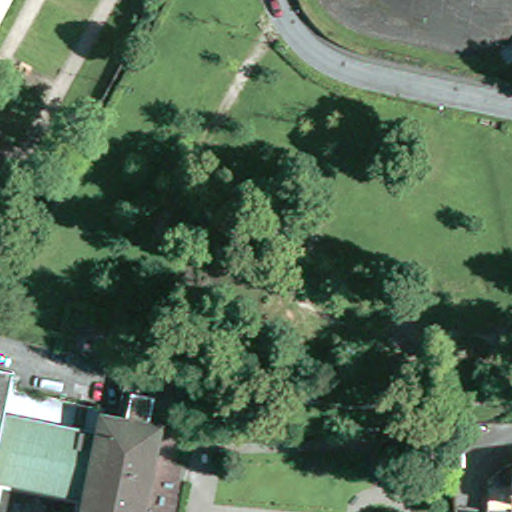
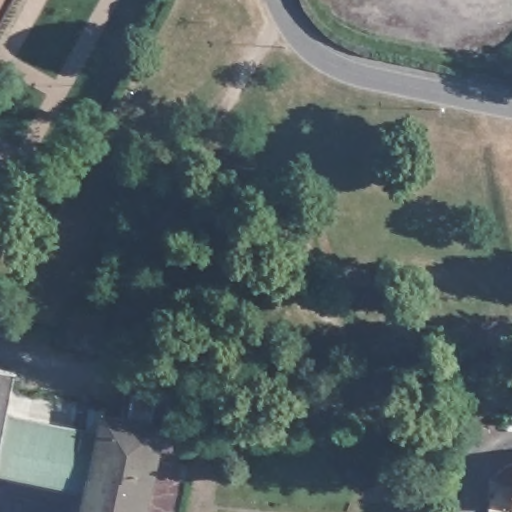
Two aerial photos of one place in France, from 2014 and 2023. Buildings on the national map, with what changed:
unchanged [(2,0),(0,4),(0,0),(2,0)]
unchanged [(14,372),(7,403),(0,443),(0,369),(14,372)]
unchanged [(88,499),(0,481),(0,443),(7,403),(104,422),(105,417),(118,419),(127,374),(187,387),(180,423),(166,419),(149,512),(86,512),(88,499)]
unchanged [(475,441),(456,442),(456,425),(475,424),(475,441)]
unchanged [(505,467),(512,467),(512,512),(497,512),(490,511),(490,482),(504,483),(504,476),(505,467)]
unchanged [(1,503),(0,509),(0,503),(1,503)]

